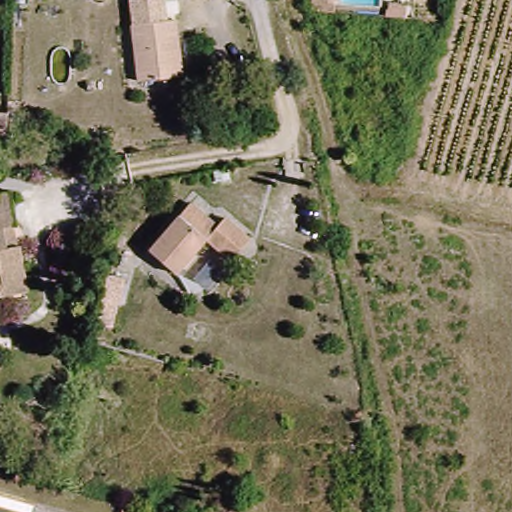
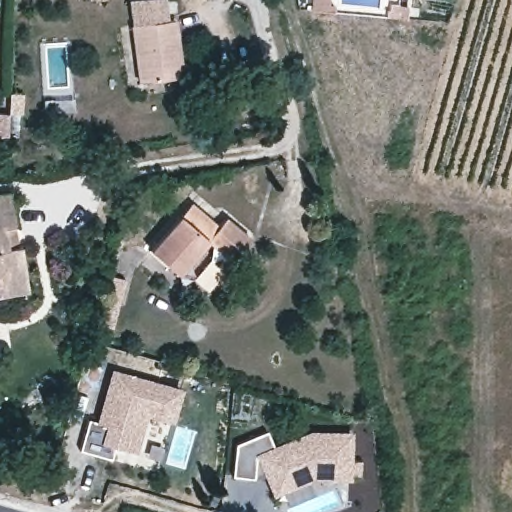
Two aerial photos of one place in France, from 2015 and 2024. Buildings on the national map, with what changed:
unchanged [(311,9),(311,0),(328,0),(328,8),(311,9)]
unchanged [(132,28),(176,23),(183,82),(139,87),(132,28)]
unchanged [(11,134),(0,136),(0,114),(11,115),(11,134)]
unchanged [(34,294),(10,299),(6,280),(0,282),(0,198),(15,195),(34,294)]
unchanged [(148,252),(187,204),(216,224),(222,215),(248,234),(232,256),(207,240),(179,276),(148,252)]
unchanged [(129,279),(117,328),(97,324),(110,275),(129,279)]
new [(113,462),(82,453),(91,422),(101,425),(104,416),(115,375),(182,393),(173,423),(147,415),(136,455),(132,467),(113,462)]
new [(358,478),(349,478),(314,478),(276,496),(259,459),(257,460),(255,481),(234,480),(236,448),(266,434),(274,451),(310,435),(349,435),(349,463),(358,463),(358,478)]

